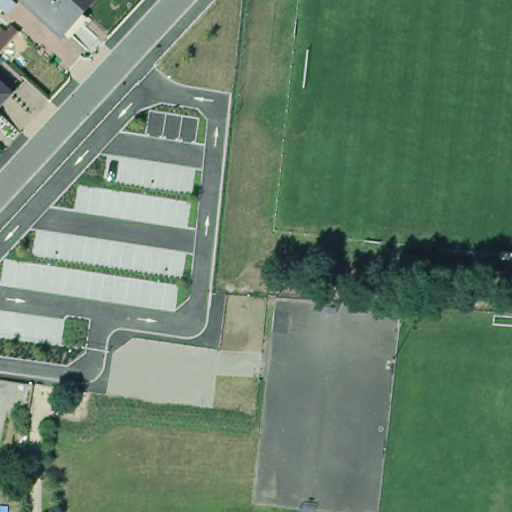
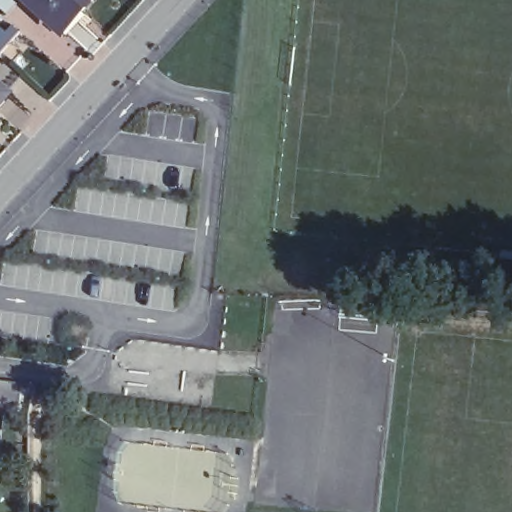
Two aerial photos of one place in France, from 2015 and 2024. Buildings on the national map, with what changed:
unchanged [(0,0),(15,0),(8,7),(0,0)]
unchanged [(37,0),(88,0),(65,25),(37,0)]
unchanged [(1,84),(0,85),(0,83),(1,84)]

